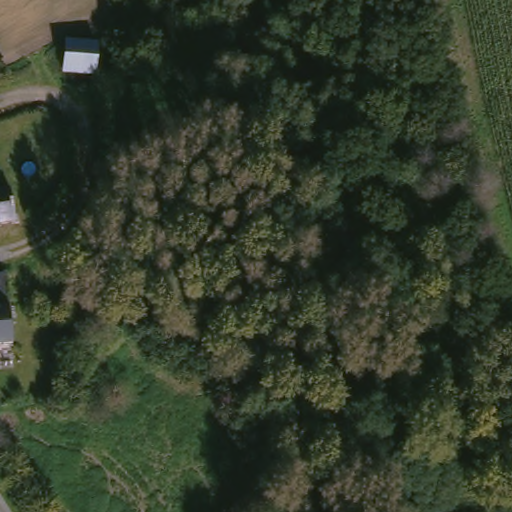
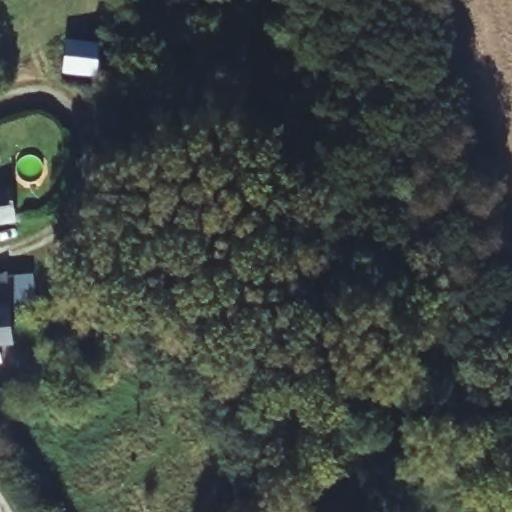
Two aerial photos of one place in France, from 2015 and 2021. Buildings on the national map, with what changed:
unchanged [(101,42),(101,76),(69,75),(70,42),(101,42)]
unchanged [(10,189),(15,225),(0,227),(0,190),(10,189)]
unchanged [(11,274),(18,344),(0,346),(0,278),(11,274)]

